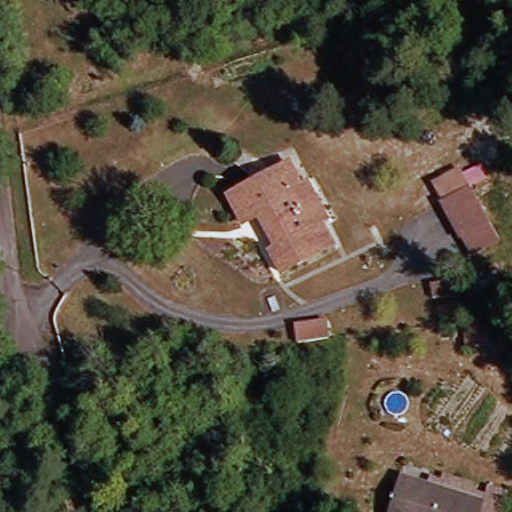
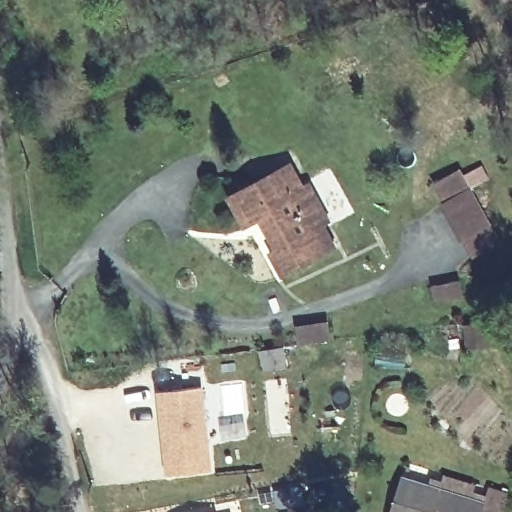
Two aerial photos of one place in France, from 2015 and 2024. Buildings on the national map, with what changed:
unchanged [(463,235),(460,236),(440,200),(443,198),(433,181),(458,167),(467,185),(491,221),(501,240),(476,253),(463,235)]
unchanged [(248,224),(250,228),(241,232),(225,200),(234,196),(290,169),(300,189),(289,194),(308,232),(322,226),(334,250),(278,278),(266,256),(272,252),(255,220),(248,224)]
unchanged [(475,298),(477,311),(451,317),(449,302),(475,298)]
unchanged [(325,322),(327,338),(295,342),(293,325),(325,322)]
new [(203,386),(213,470),(166,475),(156,391),(203,386)]
unchanged [(505,499),(500,512),(392,512),(403,479),(482,507),(486,492),(505,499)]
new [(217,511),(217,512),(214,512),(217,511)]

